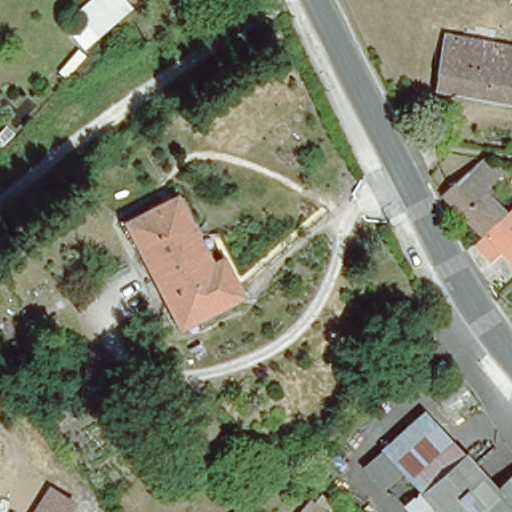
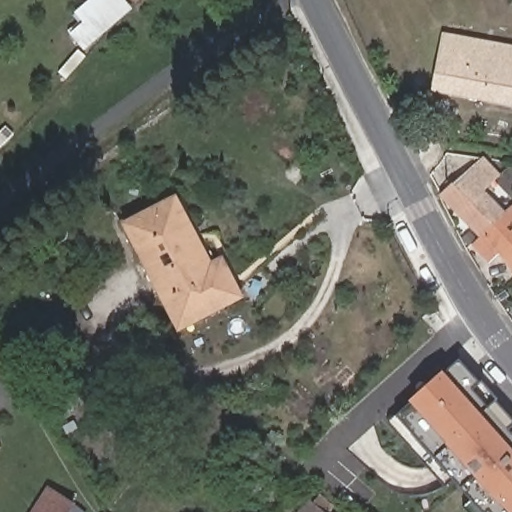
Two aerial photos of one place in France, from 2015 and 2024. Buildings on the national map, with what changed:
unchanged [(97,30),(77,10),(86,0),(125,0),(126,0),(97,30)]
unchanged [(446,34),(512,46),(512,103),(435,89),(446,34)]
unchanged [(442,195),(482,158),(497,174),(482,189),(504,214),(481,236),(442,195)]
unchanged [(181,326),(127,222),(177,197),(212,264),(222,259),(243,295),(181,326)]
unchanged [(490,261),(473,244),(481,236),(504,214),(512,206),(512,266),(499,252),(490,261)]
new [(482,382),(497,399),(512,416),(512,512),(467,512),(462,507),(470,499),(453,481),(445,488),(387,423),(396,416),(393,414),(409,401),(417,393),(397,369),(409,359),(405,354),(416,344),(441,372),(443,369),(445,371),(460,358),(482,382)]
demolished [(512,512),(440,512),(435,506),(426,495),(465,459),(467,457),(470,460),(500,495),(512,510),(512,512)]
unchanged [(73,504),(68,512),(24,512),(40,484),(73,504)]
unchanged [(312,501),(326,512),(302,512),(312,501)]
unchanged [(232,509),(237,512),(229,512),(232,509)]

